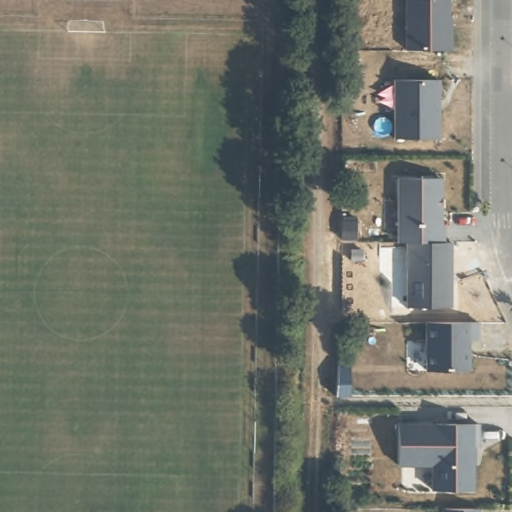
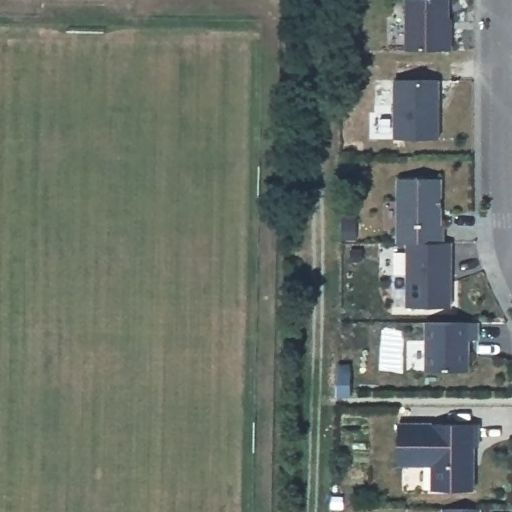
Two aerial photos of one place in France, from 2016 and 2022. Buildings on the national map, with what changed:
unchanged [(450,50),(405,52),(407,0),(450,0),(450,50)]
unchanged [(438,81),(437,138),(393,140),(391,80),(438,81)]
unchanged [(441,177),(445,237),(452,239),(452,305),(406,307),(406,246),(393,245),(394,181),(441,177)]
unchanged [(479,320),(479,338),(471,338),(469,371),(423,374),(425,323),(479,320)]
unchanged [(479,421),(473,491),(429,492),(430,463),(398,462),(399,423),(479,421)]
unchanged [(482,512),(441,512),(441,506),(482,507),(482,512)]

